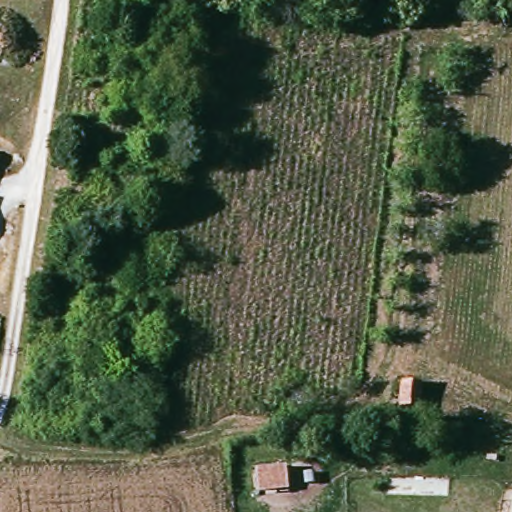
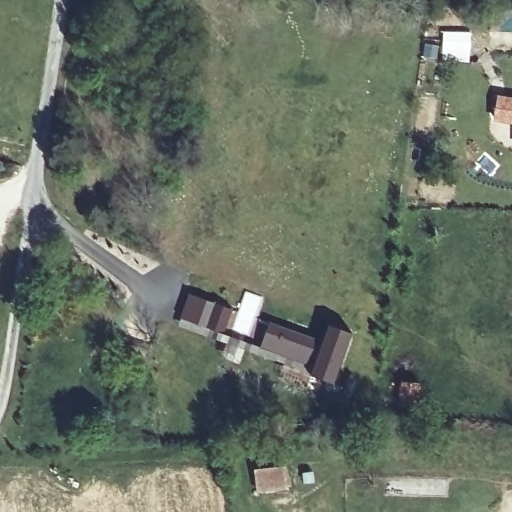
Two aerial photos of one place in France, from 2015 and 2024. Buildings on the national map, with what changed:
new [(445,32),(470,33),(470,54),(444,52),(445,32)]
new [(512,97),(512,120),(495,117),(498,95),(512,97)]
new [(188,291),(239,309),(230,332),(180,315),(188,291)]
new [(271,321),(325,340),(331,325),(355,333),(337,381),(313,373),(316,366),(262,347),(271,321)]
unchanged [(420,410),(390,406),(391,384),(423,387),(420,410)]
unchanged [(256,489),(255,470),(284,466),(286,486),(256,489)]

